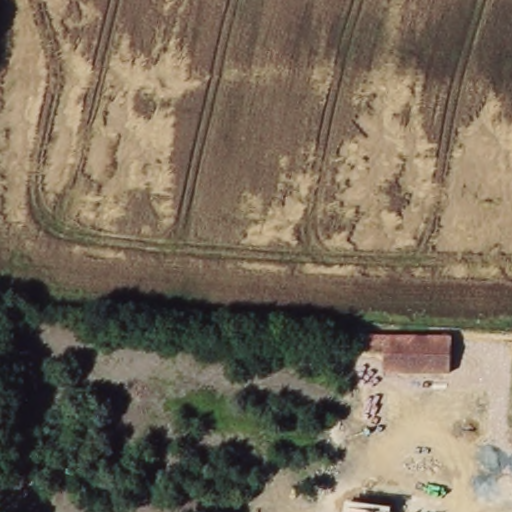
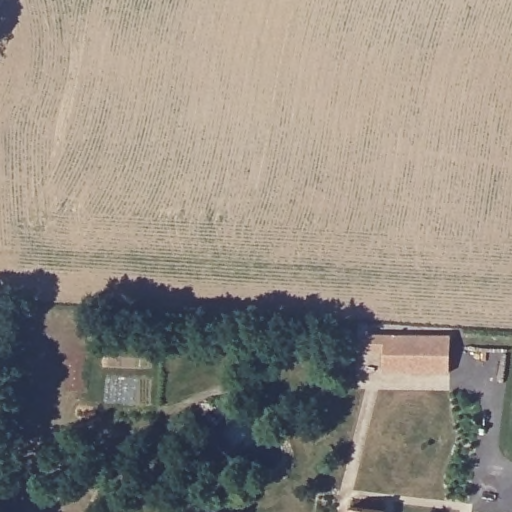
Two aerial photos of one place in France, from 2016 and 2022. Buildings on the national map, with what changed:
unchanged [(367,330),(451,331),(451,367),(384,367),(385,348),(367,348),(367,330)]
unchanged [(352,507),(386,512),(385,512),(351,512),(352,507)]

